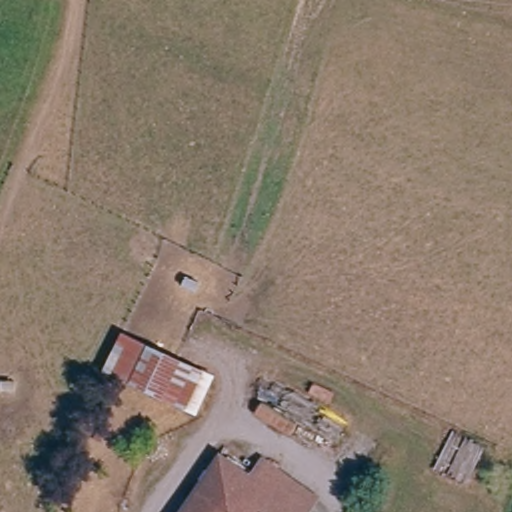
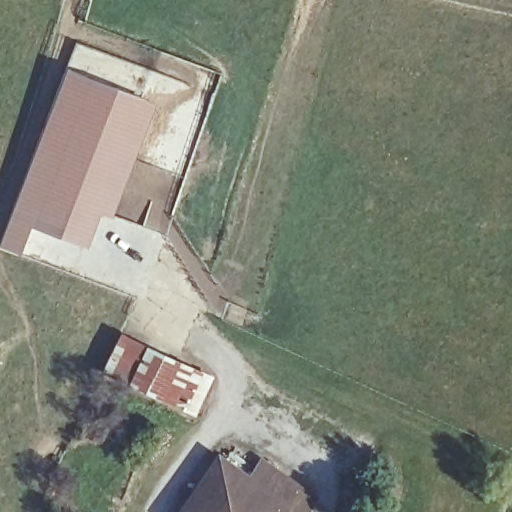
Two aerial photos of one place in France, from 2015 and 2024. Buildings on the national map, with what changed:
new [(29,227),(19,252),(0,246),(0,240),(65,68),(154,102),(111,217),(98,212),(85,247),(29,227)]
unchanged [(214,380),(196,420),(99,373),(119,330),(214,380)]
unchanged [(227,458),(223,468),(245,483),(258,463),(289,481),(293,474),(322,492),(309,512),(181,512),(198,484),(184,474),(198,452),(202,446),(227,458)]

